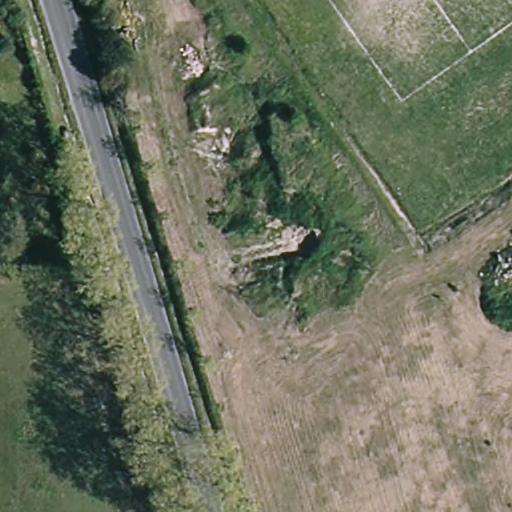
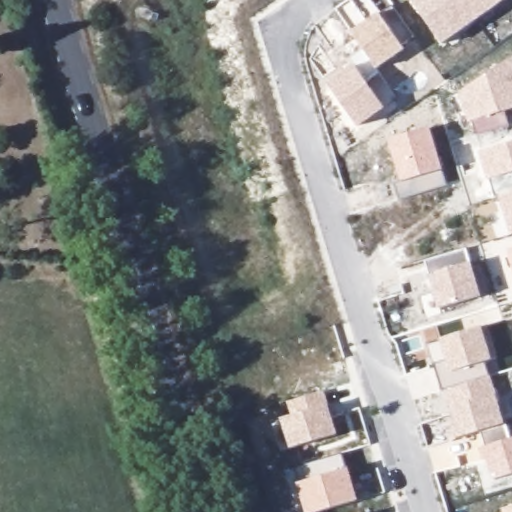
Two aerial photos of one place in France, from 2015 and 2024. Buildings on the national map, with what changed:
new [(412,0),(506,0),(443,45),(412,0)]
new [(381,12),(407,50),(377,70),(380,73),(367,81),(386,109),(358,127),(328,85),(355,66),(348,60),(363,49),(352,34),(381,12)]
new [(510,126),(476,136),(472,122),(469,122),(458,92),(512,59),(512,110),(505,112),(510,126)]
new [(402,184),(388,142),(431,129),(445,171),(442,171),(448,186),(398,202),(393,185),(402,184)]
new [(501,197),(495,197),(490,182),(481,153),(512,144),(512,233),(511,234),(501,197)]
new [(426,263),(465,251),(467,264),(471,262),(483,296),(439,311),(433,294),(426,263)]
new [(512,251),(512,266),(507,252),(512,251)]
new [(512,476),(494,481),(483,447),(477,433),(456,439),(450,422),(452,422),(449,407),(451,407),(447,390),(442,391),(435,365),(446,360),(441,340),(483,327),(493,361),(484,362),(505,426),(510,439),(512,439),(512,476)]
new [(325,407),(329,406),(337,435),(291,450),(281,420),(290,416),(286,403),(325,392),(325,407)]
new [(300,483),(296,470),(342,455),(346,470),(350,468),(359,500),(323,512),(305,512),(297,483),(300,483)]
new [(512,506),(512,512),(504,512),(503,508),(512,506)]

